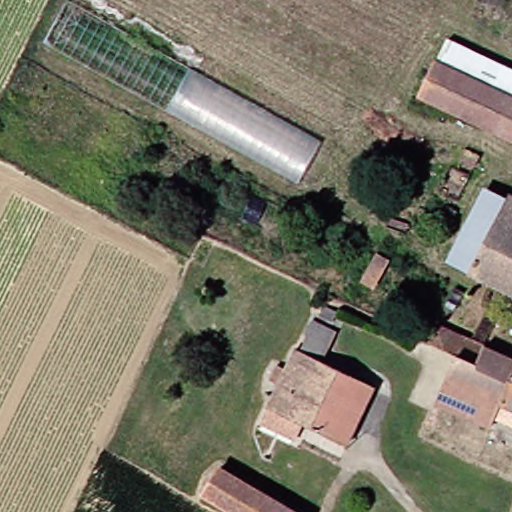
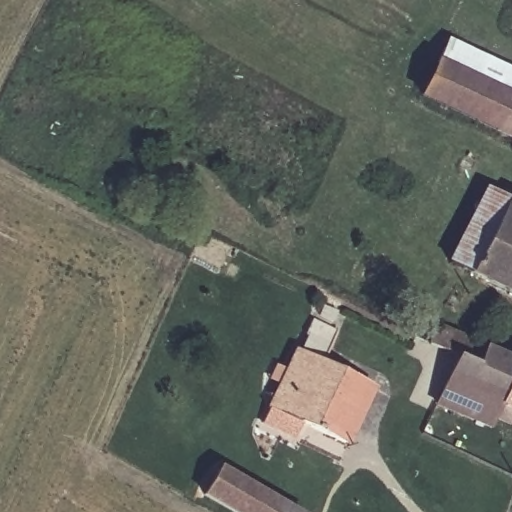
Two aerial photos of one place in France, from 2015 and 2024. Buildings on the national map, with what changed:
demolished [(320,141),(294,183),(40,45),(63,3),(320,141)]
unchanged [(452,36),(512,63),(512,137),(419,93),(442,54),(452,36)]
unchanged [(504,201),(509,191),(512,193),(512,292),(471,274),(504,201)]
unchanged [(449,264),(482,192),(504,201),(471,274),(449,264)]
unchanged [(317,329),(322,319),(335,324),(331,334),(317,329)]
unchanged [(472,359),(459,353),(432,340),(440,319),(483,336),(472,359)]
unchanged [(265,420),(277,395),(269,391),(276,377),(284,382),(295,361),(299,364),(307,349),(304,347),(312,333),(337,345),(322,375),(353,391),(323,450),(290,433),(284,446),(258,433),(265,420)]
unchanged [(438,405),(459,353),(472,359),(483,336),(512,347),(512,405),(498,400),(489,424),(465,415),(438,405)]
unchanged [(372,401),(342,460),(323,450),(353,391),(372,401)]
unchanged [(208,496),(223,471),(298,512),(238,512),(208,496)]

